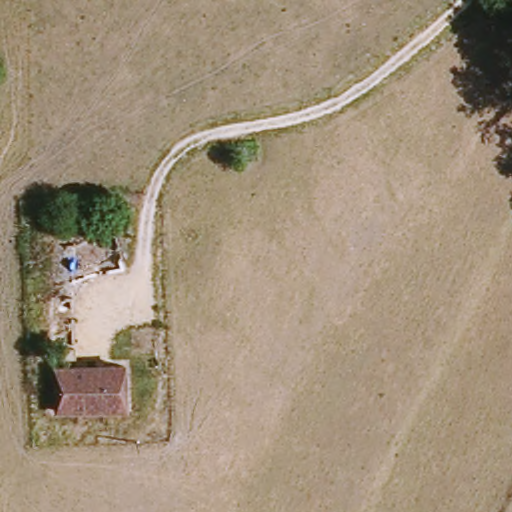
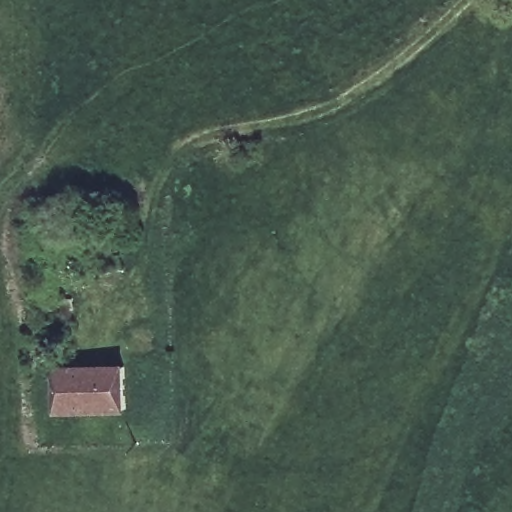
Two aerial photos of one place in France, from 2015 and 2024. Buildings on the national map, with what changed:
unchanged [(54,418),(54,368),(132,371),(130,418),(54,418)]

